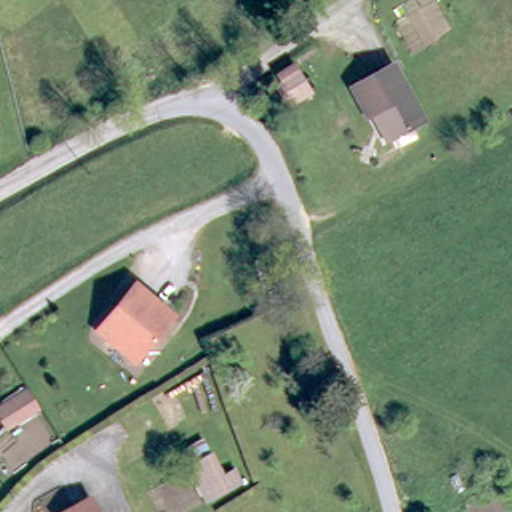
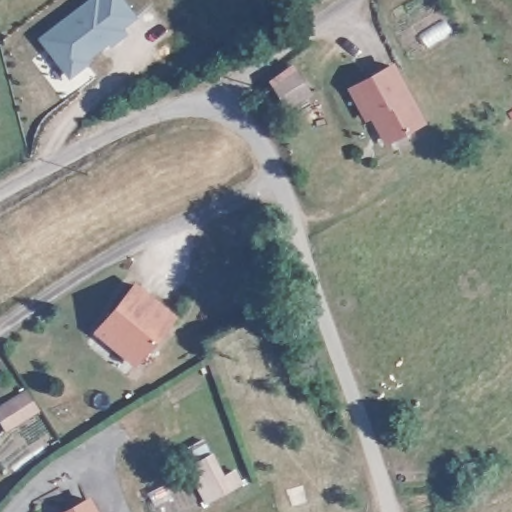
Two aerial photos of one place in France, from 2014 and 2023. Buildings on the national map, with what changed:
new [(125,0),(137,14),(123,25),(127,31),(114,42),(112,39),(88,57),(90,60),(73,74),(45,38),(92,0),(125,0)]
unchanged [(305,81),(287,93),(277,77),(295,65),(305,81)]
unchanged [(372,116),(366,119),(351,92),(392,70),(421,124),(394,139),(386,143),(372,116)]
demolished [(317,99),(298,111),(288,95),(307,83),(317,99)]
unchanged [(267,128),(257,113),(264,109),(272,126),(267,128)]
unchanged [(133,286),(145,297),(171,319),(132,364),(94,331),(102,321),(133,286)]
unchanged [(35,400),(45,417),(15,436),(5,418),(35,400)]
unchanged [(209,457),(220,479),(230,474),(237,485),(205,503),(186,470),(209,457)]
unchanged [(85,501),(91,512),(65,512),(85,501)]

